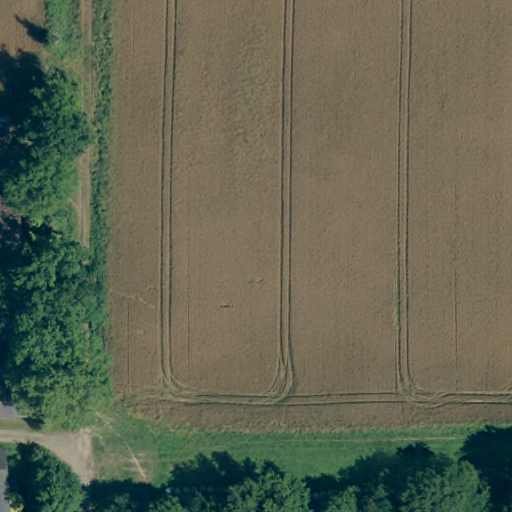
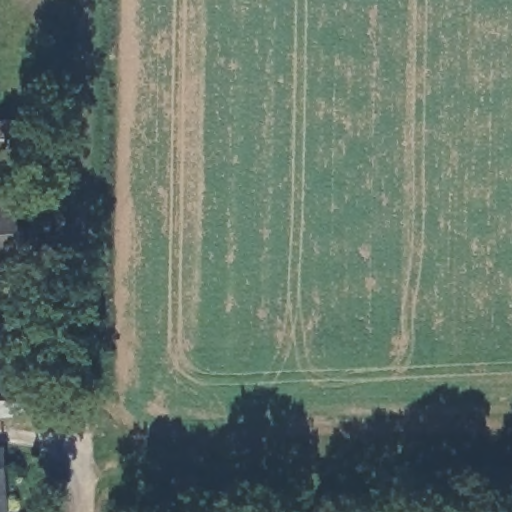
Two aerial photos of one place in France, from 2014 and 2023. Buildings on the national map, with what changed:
unchanged [(14,192),(20,270),(0,271),(0,193),(14,192)]
unchanged [(23,382),(23,394),(30,394),(30,407),(24,407),(24,416),(0,416),(0,383),(23,382)]
unchanged [(3,512),(0,512),(0,459),(3,512)]

